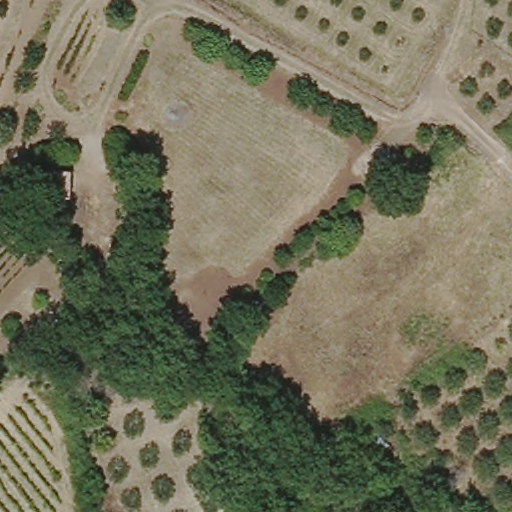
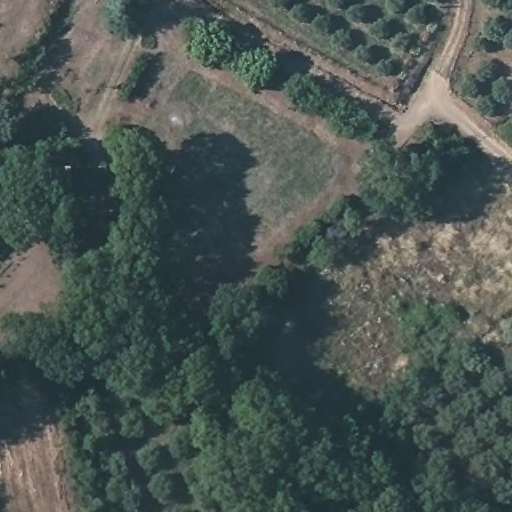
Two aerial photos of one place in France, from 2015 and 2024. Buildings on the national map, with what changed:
unchanged [(46,166),(67,167),(66,195),(43,194),(46,166)]

